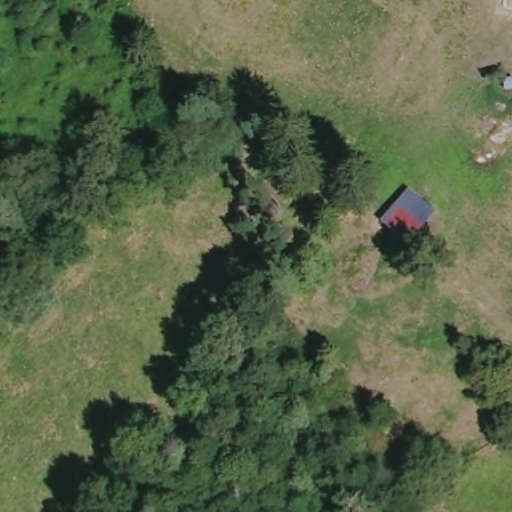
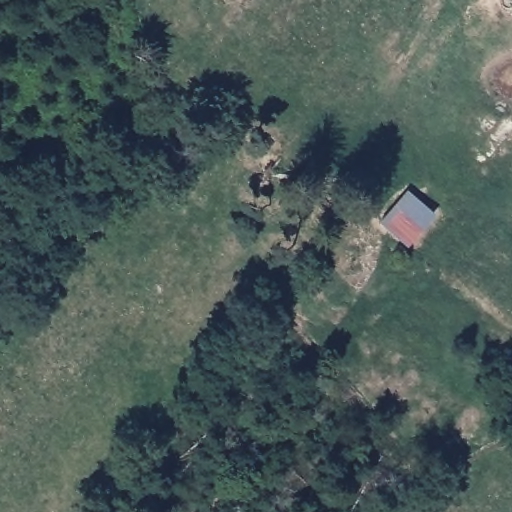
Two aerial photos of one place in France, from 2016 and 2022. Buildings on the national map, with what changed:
unchanged [(400,245),(376,222),(406,190),(435,214),(400,245)]

